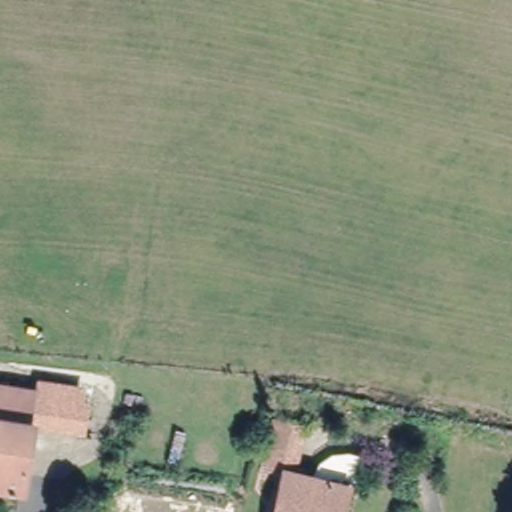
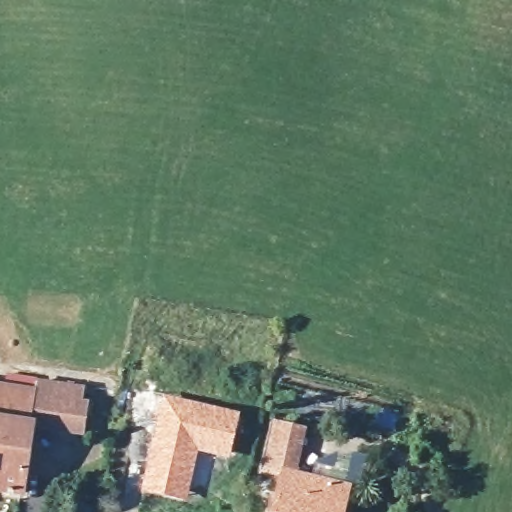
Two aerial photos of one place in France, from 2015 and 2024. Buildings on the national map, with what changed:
unchanged [(0,384),(36,391),(37,378),(85,386),(80,409),(75,436),(28,427),(15,493),(0,490),(0,384)]
new [(161,393),(241,412),(230,458),(199,452),(187,502),(139,492),(161,393)]
unchanged [(272,414),(309,422),(298,470),(290,468),(288,473),(260,469),(272,414)]
unchanged [(290,468),(298,470),(348,485),(340,512),(277,512),(288,473),(290,468)]

